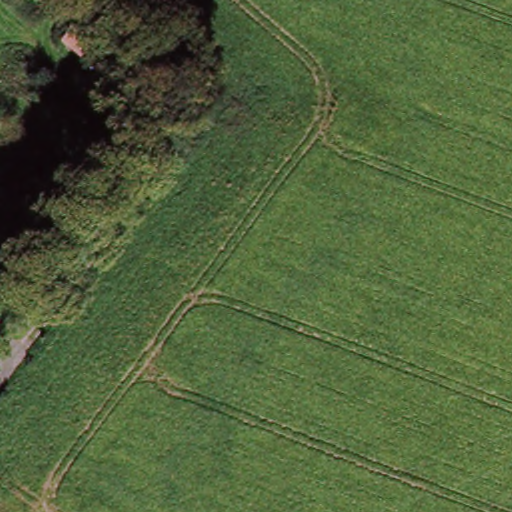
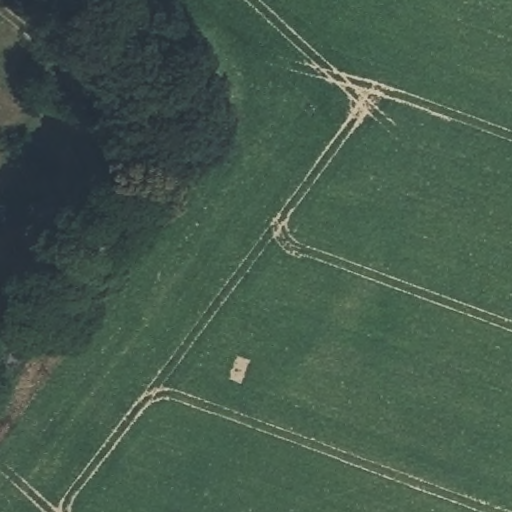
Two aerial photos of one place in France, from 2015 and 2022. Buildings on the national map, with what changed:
unchanged [(136,82),(117,104),(56,54),(74,31),(136,82)]

